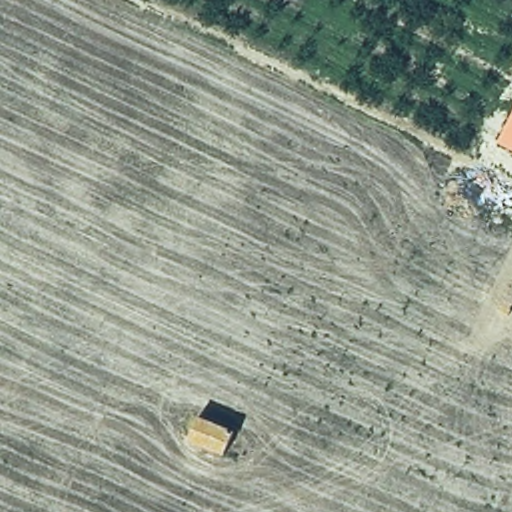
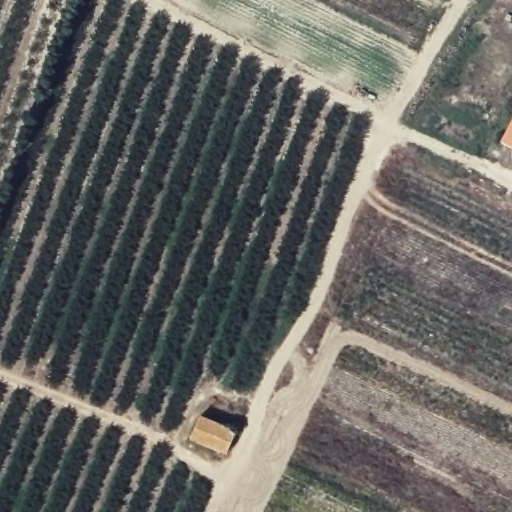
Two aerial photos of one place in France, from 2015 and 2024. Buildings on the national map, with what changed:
unchanged [(500,144),(512,119),(512,151),(500,144)]
unchanged [(234,435),(228,458),(188,444),(195,422),(234,435)]

